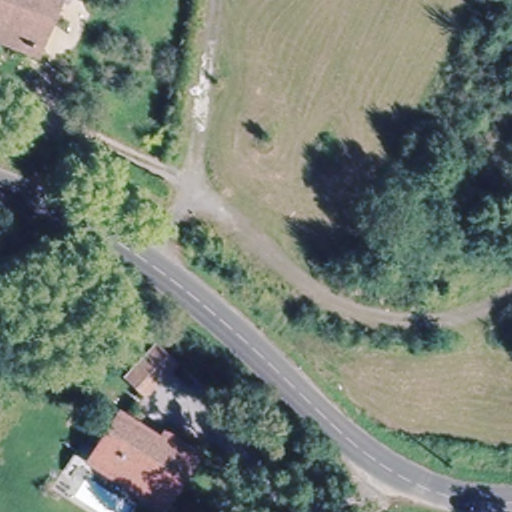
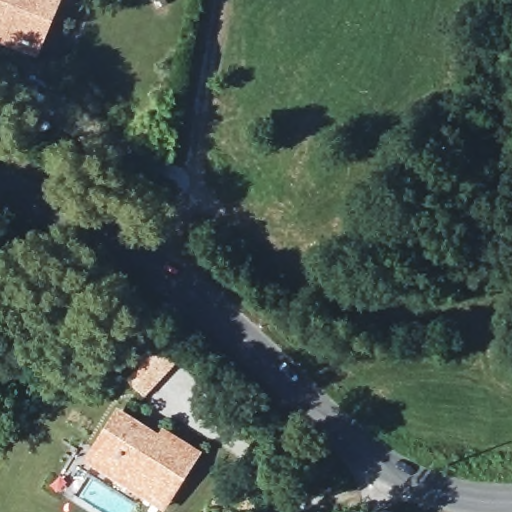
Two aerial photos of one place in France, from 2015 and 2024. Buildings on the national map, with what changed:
unchanged [(30,49),(0,37),(0,0),(47,0),(30,49)]
unchanged [(176,361),(146,397),(124,380),(155,343),(176,361)]
unchanged [(165,510),(135,490),(111,474),(91,460),(95,452),(117,414),(138,428),(131,440),(147,450),(159,433),(192,455),(186,463),(191,466),(165,510)]

